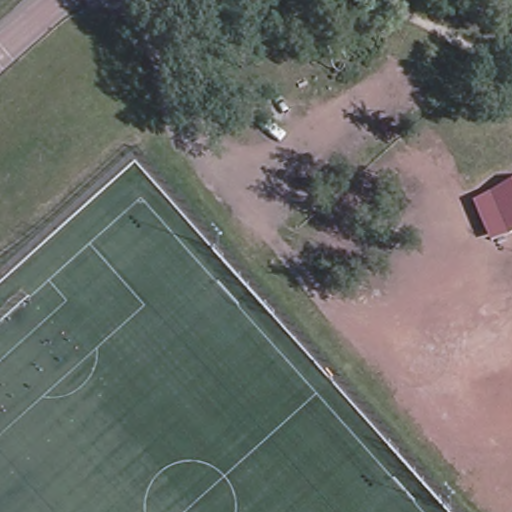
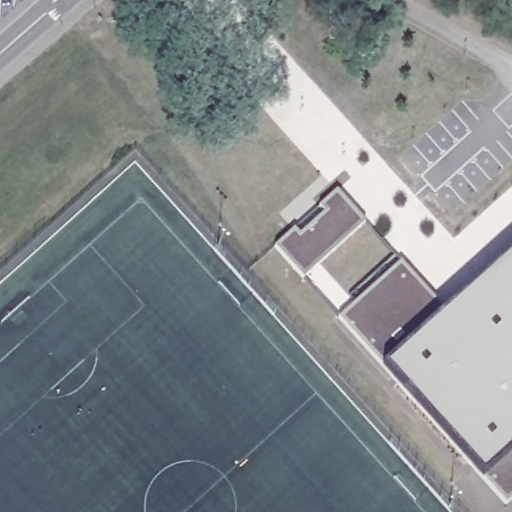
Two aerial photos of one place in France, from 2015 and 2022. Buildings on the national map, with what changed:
demolished [(470,197),(512,178),(512,228),(487,238),(470,197)]
new [(366,221),(304,278),(275,246),(294,228),(299,235),(325,213),(320,205),(336,190),(366,221)]
new [(483,475),(382,365),(388,361),(340,315),(401,261),(451,306),(512,250),(512,497),(506,503),(483,475)]

